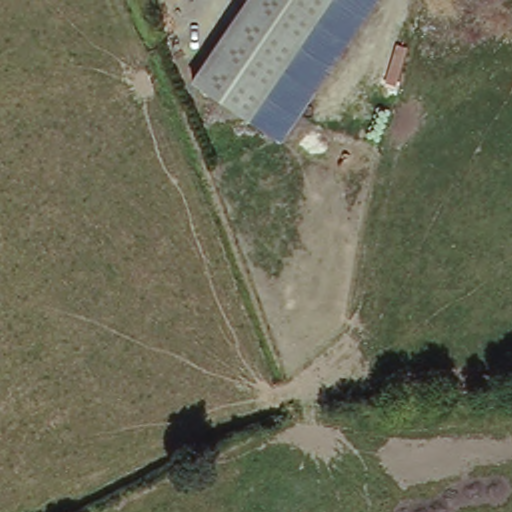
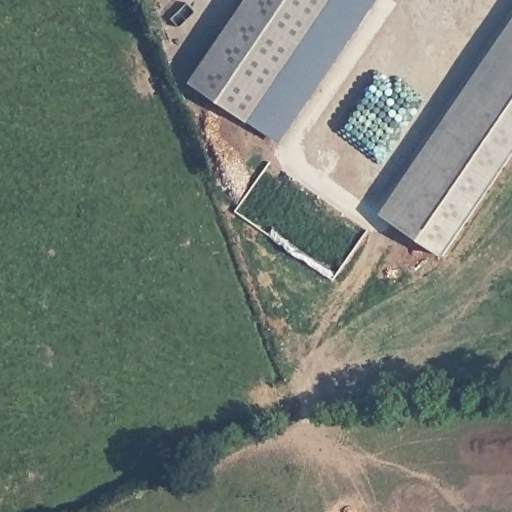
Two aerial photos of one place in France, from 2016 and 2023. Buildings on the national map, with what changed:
unchanged [(377,0),(283,140),(191,84),(248,0),(377,0)]
new [(512,17),(512,159),(443,260),(375,216),(512,17)]

